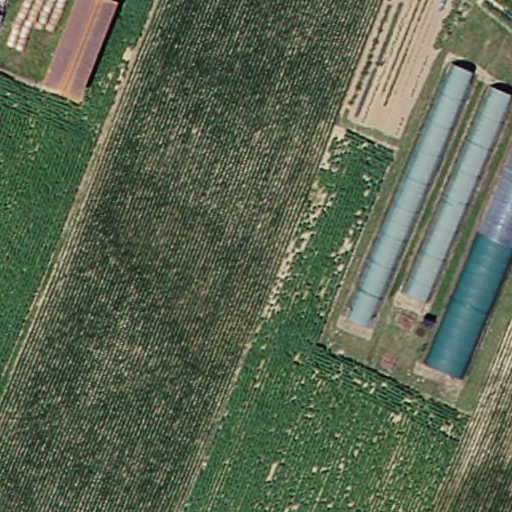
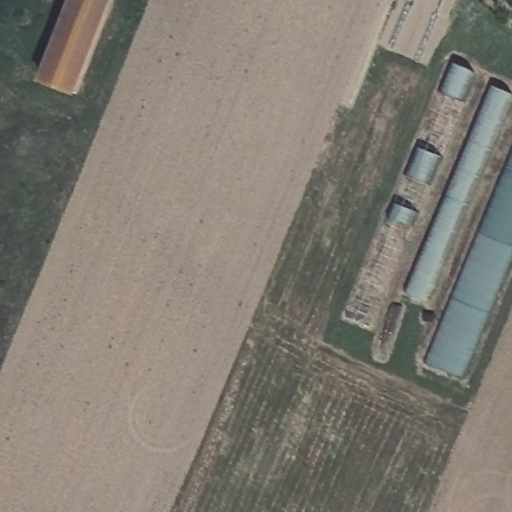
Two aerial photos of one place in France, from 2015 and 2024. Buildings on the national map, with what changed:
unchanged [(78,88),(46,75),(74,0),(111,0),(78,88)]
unchanged [(351,310),(456,60),(476,68),(372,320),(351,310)]
unchanged [(408,286),(494,82),(512,89),(512,101),(431,295),(408,286)]
unchanged [(462,375),(433,362),(512,164),(512,248),(462,375)]

